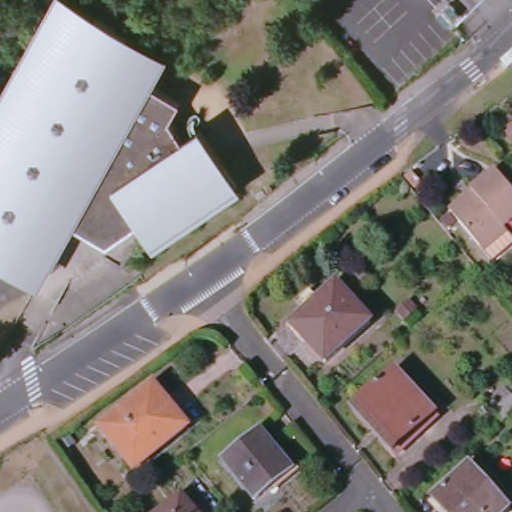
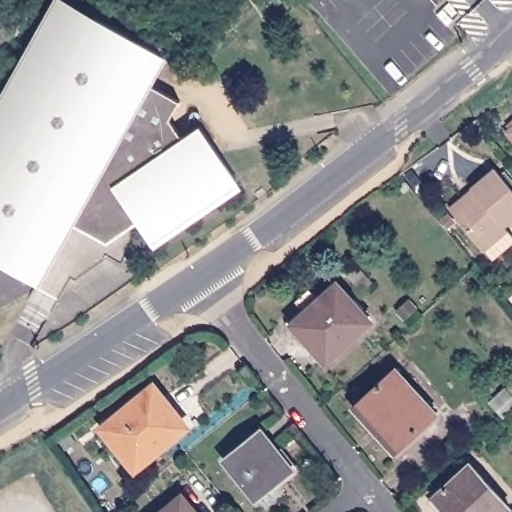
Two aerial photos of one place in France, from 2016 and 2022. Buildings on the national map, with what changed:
unchanged [(107,24),(112,26),(117,29),(119,31),(122,34),(124,37),(125,40),(125,43),(161,63),(148,87),(180,101),(171,120),(183,139),(200,127),(238,183),(152,242),(133,216),(115,228),(115,231),(115,235),(113,238),(109,240),(103,241),(100,239),(97,236),(97,233),(97,230),(71,216),(59,237),(62,239),(41,278),(33,276),(26,274),(17,271),(9,268),(2,264),(0,263),(0,116),(47,32),(43,30),(57,6),(92,24),(92,21),(93,21),(100,22),(107,24)]
unchanged [(507,133),(510,130),(507,126),(512,122),(512,138),(507,133)]
unchanged [(512,189),(512,220),(505,227),(512,236),(512,245),(493,261),(450,210),(466,197),(470,201),(476,195),(472,190),(495,170),(512,189)]
unchanged [(337,285),(372,322),(327,363),(293,325),(337,285)]
unchanged [(396,368),(437,413),(398,449),(357,404),(396,368)]
unchanged [(154,387),(187,427),(161,449),(157,445),(137,462),(123,445),(120,448),(103,429),(154,387)]
unchanged [(505,420),(498,413),(498,412),(490,404),(507,389),(512,395),(512,413),(505,420)]
unchanged [(262,431),(294,470),(255,501),(223,462),(262,431)]
unchanged [(470,465),(511,509),(508,512),(446,512),(433,498),(470,465)]
unchanged [(182,495),(196,512),(162,512),(182,495)]

